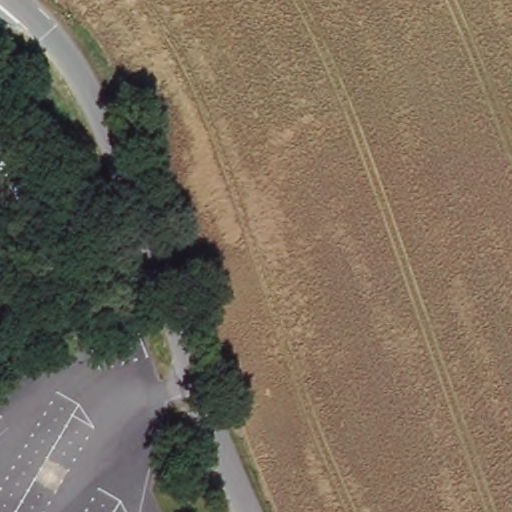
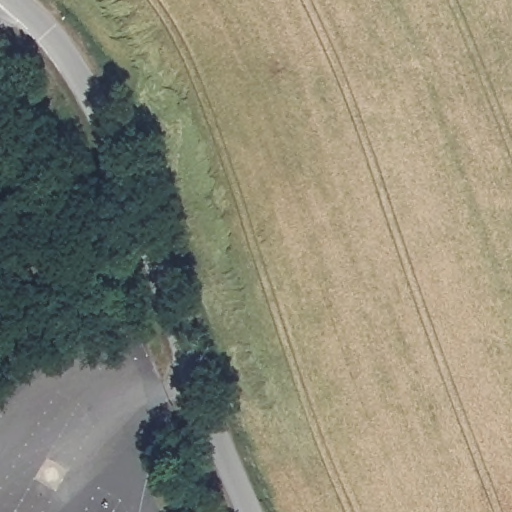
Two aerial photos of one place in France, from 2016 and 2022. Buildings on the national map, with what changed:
[]

